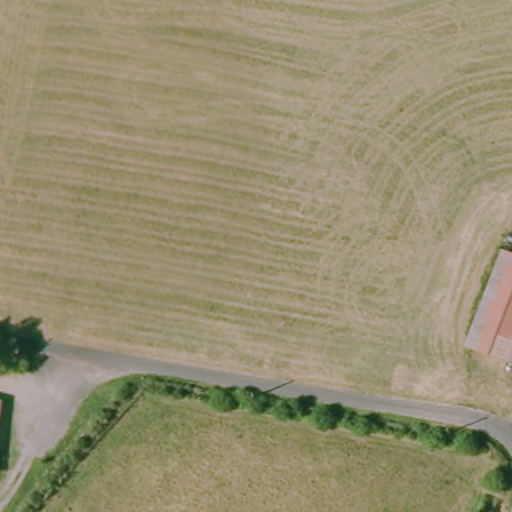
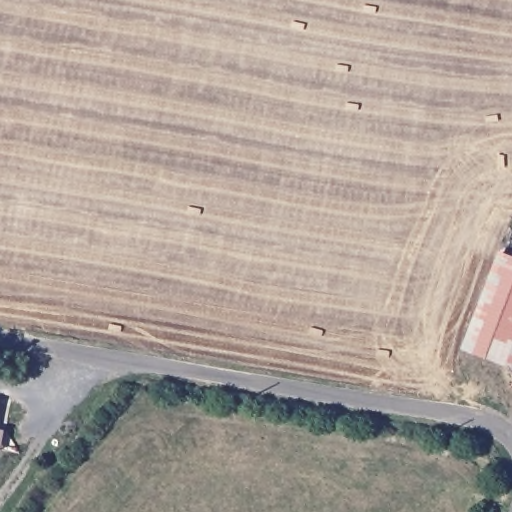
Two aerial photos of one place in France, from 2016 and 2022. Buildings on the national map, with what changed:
unchanged [(509,258),(512,251),(512,259),(509,258)]
unchanged [(477,330),(485,315),(509,258),(512,259),(512,333),(477,330)]
unchanged [(512,333),(512,369),(469,349),(470,346),(477,330),(512,333)]

